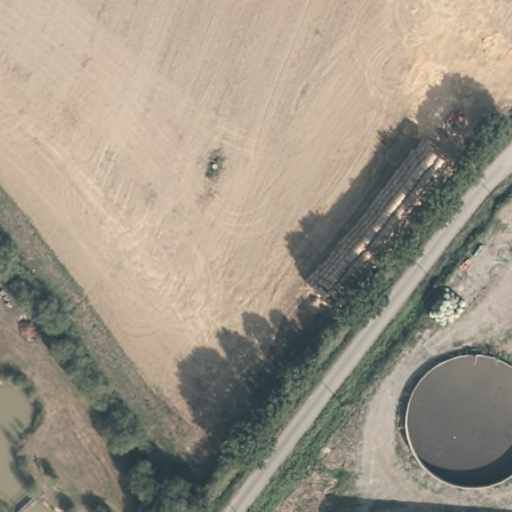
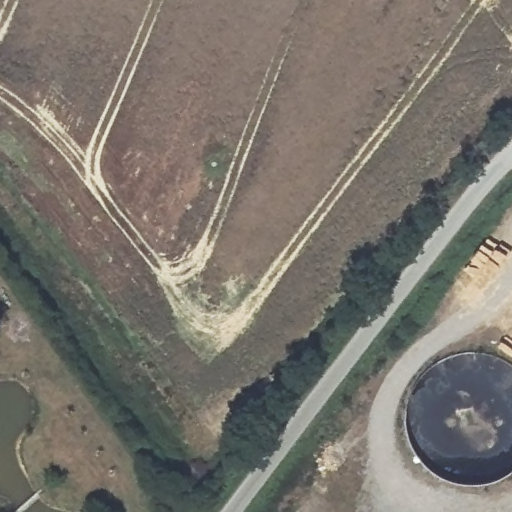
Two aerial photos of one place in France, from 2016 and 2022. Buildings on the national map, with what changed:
[]

